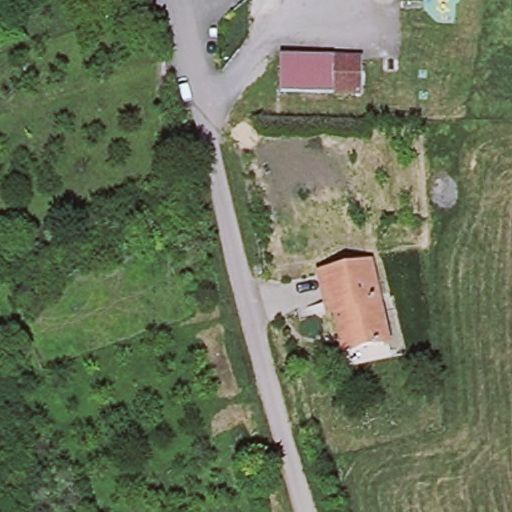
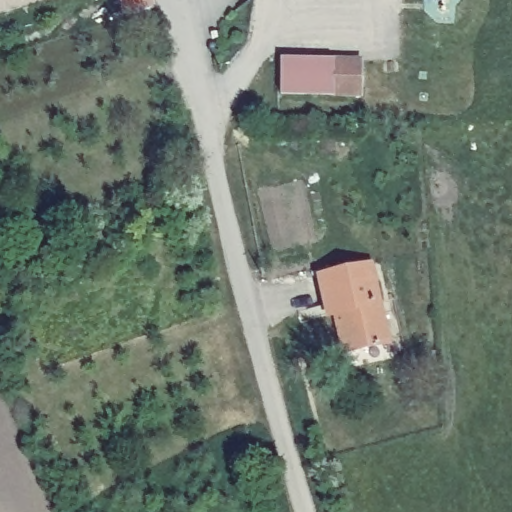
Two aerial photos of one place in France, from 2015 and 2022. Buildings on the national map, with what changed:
unchanged [(0,0),(25,0),(0,10),(0,0)]
unchanged [(125,17),(119,0),(147,0),(150,10),(125,17)]
unchanged [(367,97),(337,96),(285,96),(285,62),(337,63),(367,64),(367,97)]
unchanged [(339,334),(333,311),(326,312),(324,304),(319,277),(369,266),(387,343),(360,350),(343,353),(339,334)]

